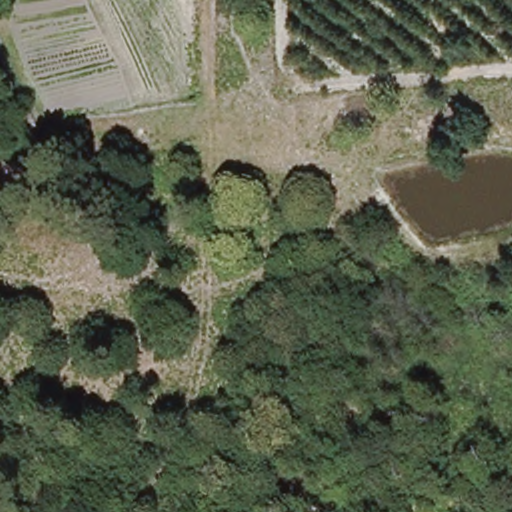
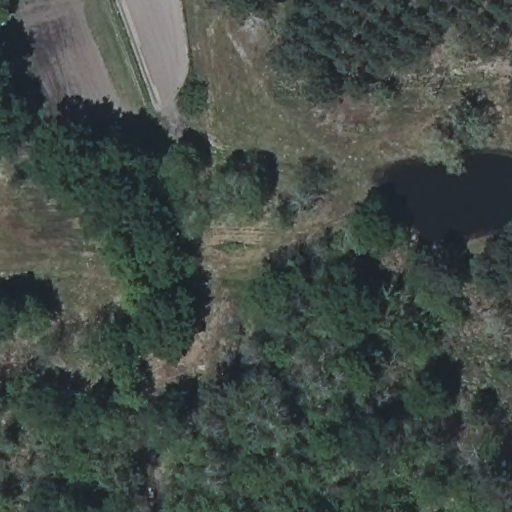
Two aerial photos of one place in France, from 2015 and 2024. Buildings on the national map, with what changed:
[]

